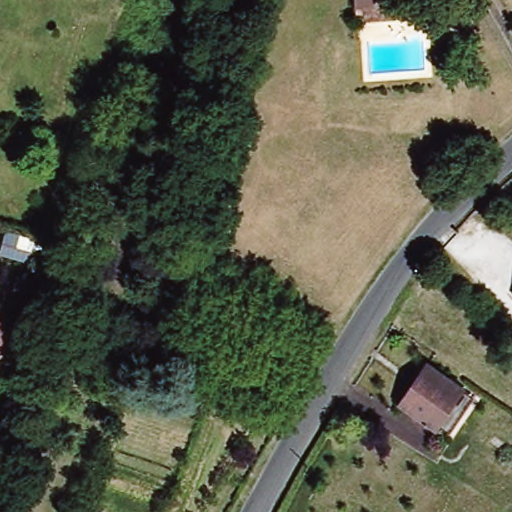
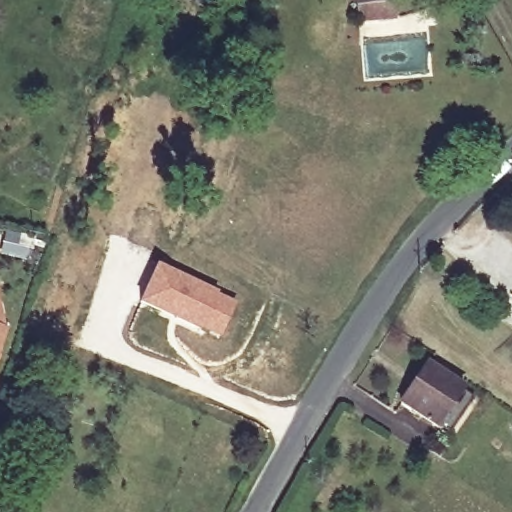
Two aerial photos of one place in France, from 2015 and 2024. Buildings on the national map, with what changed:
unchanged [(355,8),(354,0),(395,0),(396,13),(362,15),(362,10),(355,8)]
new [(156,262),(237,301),(220,337),(138,301),(156,262)]
unchanged [(0,352),(0,308),(3,333),(2,342),(0,352)]
unchanged [(464,389),(440,427),(403,403),(427,364),(464,389)]

